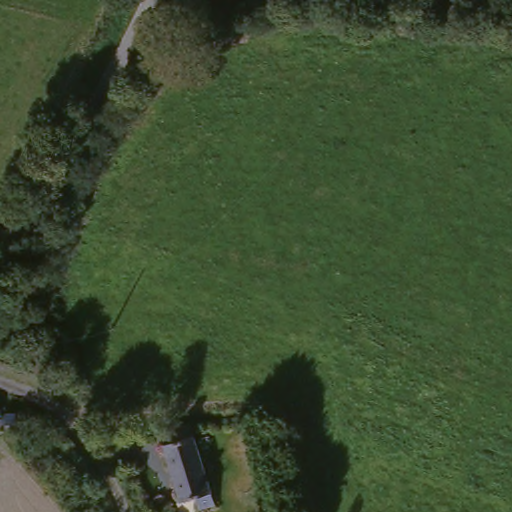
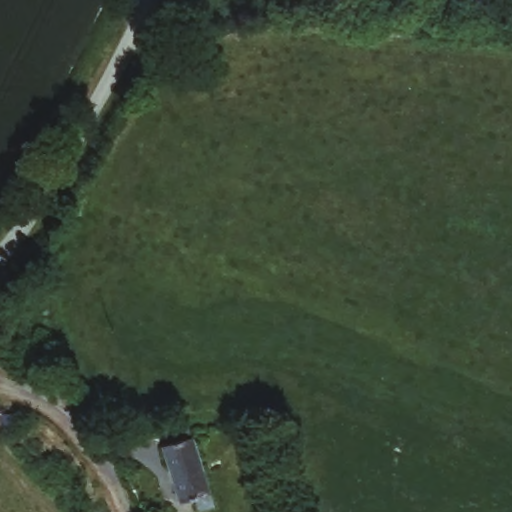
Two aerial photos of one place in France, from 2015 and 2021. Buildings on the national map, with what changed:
unchanged [(178,505),(172,506),(154,449),(159,448),(154,433),(177,426),(181,440),(199,498),(203,512),(180,512),(178,505)]

